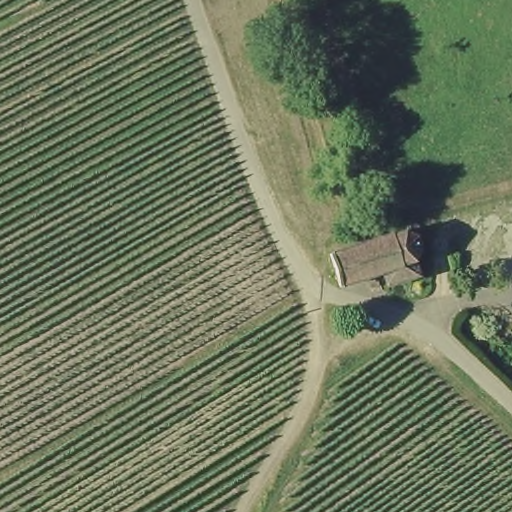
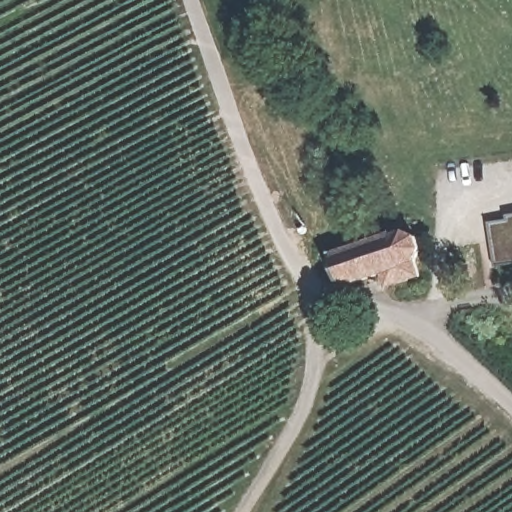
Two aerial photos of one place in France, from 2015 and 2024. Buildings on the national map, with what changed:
new [(484,219),(502,216),(500,211),(512,210),(512,269),(492,271),(484,219)]
unchanged [(334,253),(395,232),(396,234),(409,230),(420,235),(425,248),(417,259),(424,275),(391,285),(387,273),(343,285),(334,253)]

